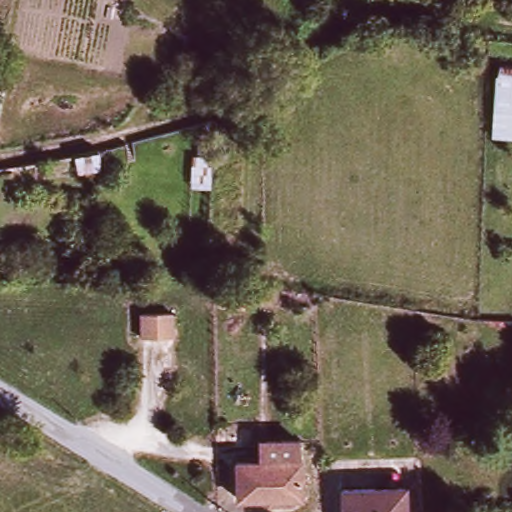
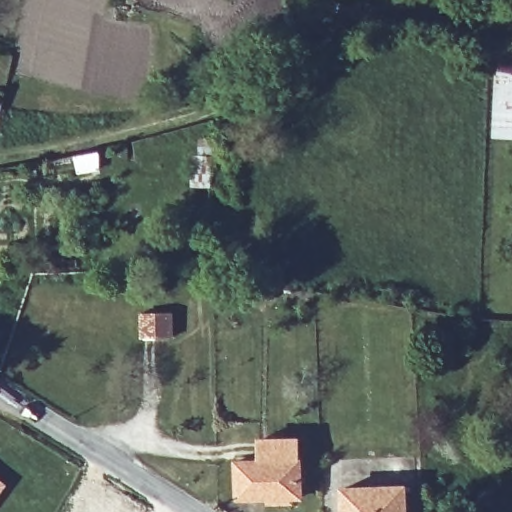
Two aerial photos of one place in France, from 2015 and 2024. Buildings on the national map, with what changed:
unchanged [(495,140),(500,74),(512,76),(512,142),(495,140)]
unchanged [(250,306),(223,306),(223,301),(223,292),(251,291),(250,306)]
unchanged [(175,341),(145,341),(144,317),(174,316),(175,341)]
unchanged [(237,503),(236,467),(259,467),(258,447),(296,446),(297,466),(298,502),(237,503)]
new [(0,494),(0,479),(7,484),(0,494)]
unchanged [(345,492),(405,492),(405,512),(345,512),(345,492)]

